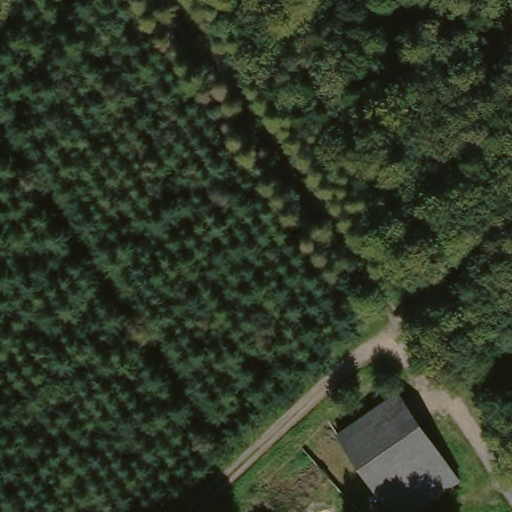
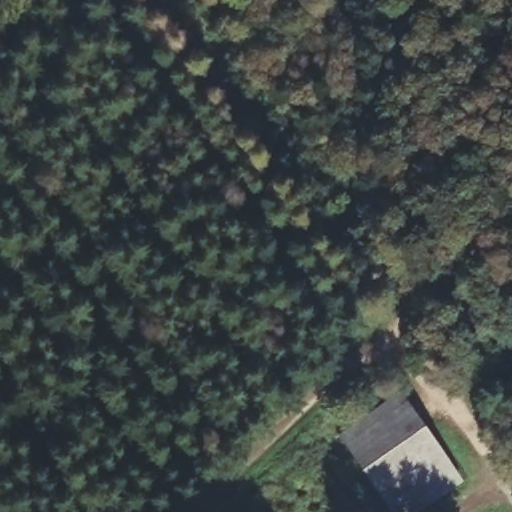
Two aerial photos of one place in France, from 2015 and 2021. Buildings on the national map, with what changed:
unchanged [(346,436),(410,399),(436,444),(373,481),(346,436)]
unchanged [(460,483),(412,512),(391,512),(373,481),(436,444),(460,483)]

